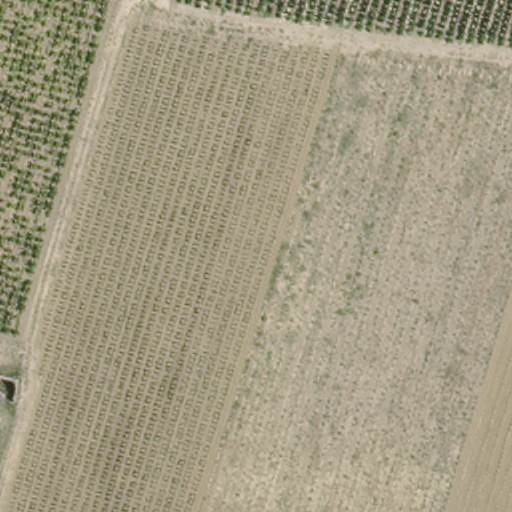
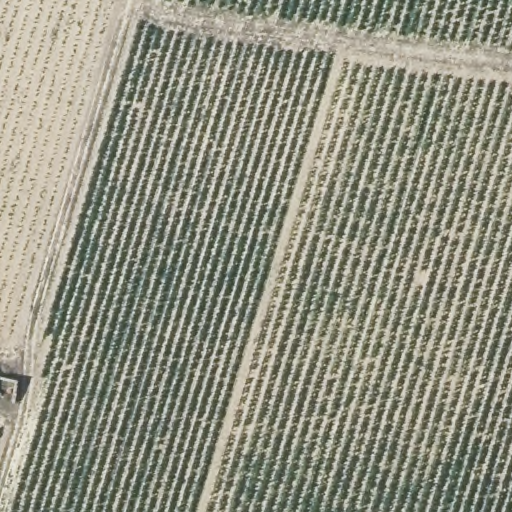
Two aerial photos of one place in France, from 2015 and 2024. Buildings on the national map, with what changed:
unchanged [(12,405),(0,399),(0,373),(17,382),(12,405)]

